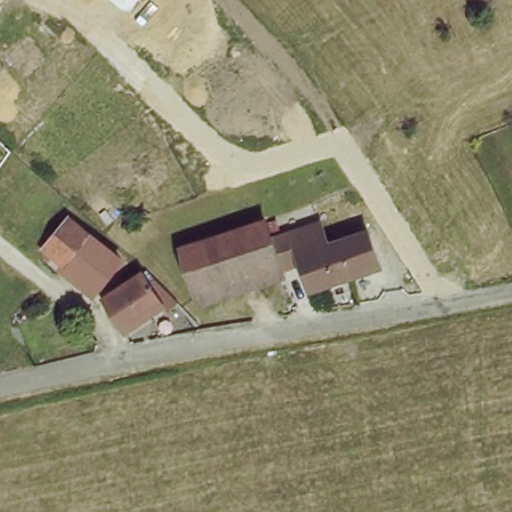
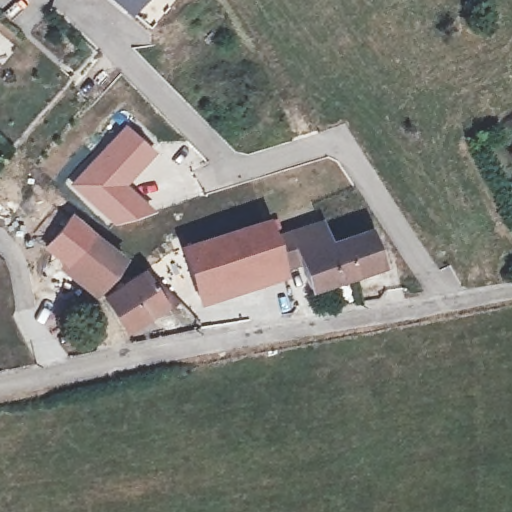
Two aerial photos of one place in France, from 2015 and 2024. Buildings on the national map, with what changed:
new [(118,0),(145,0),(134,13),(118,0)]
new [(127,124),(153,149),(127,182),(147,201),(153,212),(110,225),(109,224),(70,186),(127,124)]
unchanged [(121,261),(100,290),(48,250),(69,221),(121,261)]
unchanged [(184,250),(276,222),(284,240),(319,228),(322,239),(337,235),(343,246),(366,240),(380,269),(308,292),(298,265),(234,283),(236,299),(203,302),(199,303),(184,250)]
unchanged [(106,306),(142,277),(150,287),(157,283),(171,301),(127,332),(106,306)]

